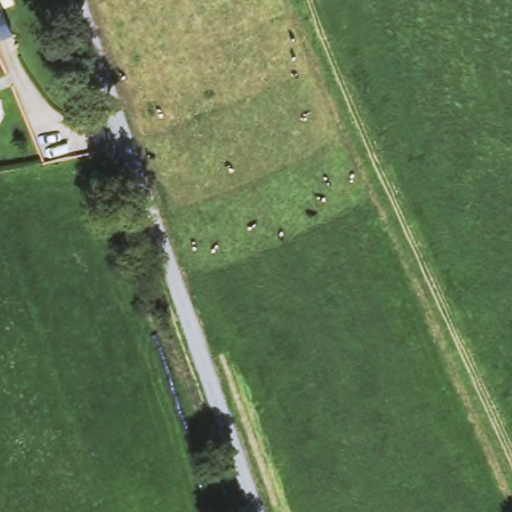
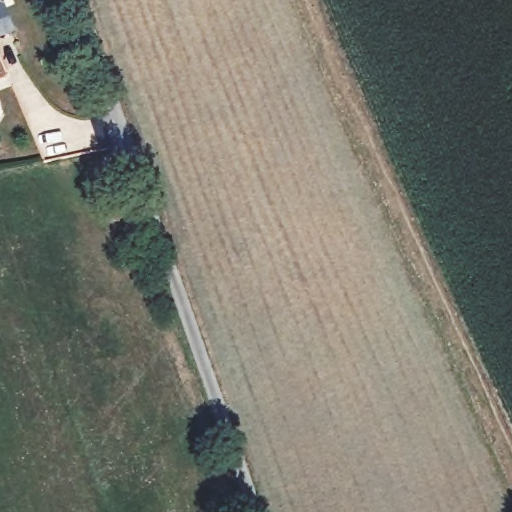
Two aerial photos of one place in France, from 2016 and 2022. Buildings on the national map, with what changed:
unchanged [(0,31),(0,0),(10,0),(19,23),(0,31)]

